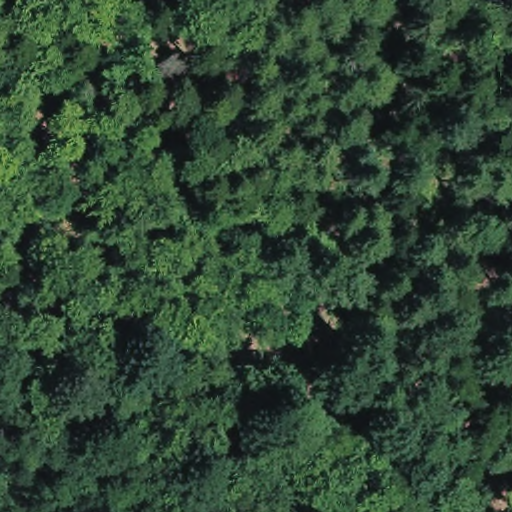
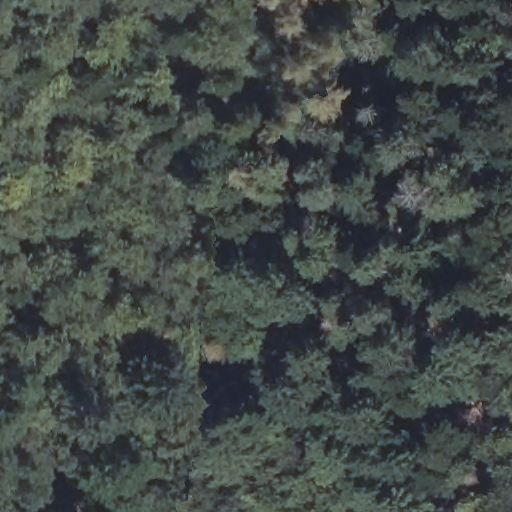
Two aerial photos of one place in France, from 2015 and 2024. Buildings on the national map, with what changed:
[]

